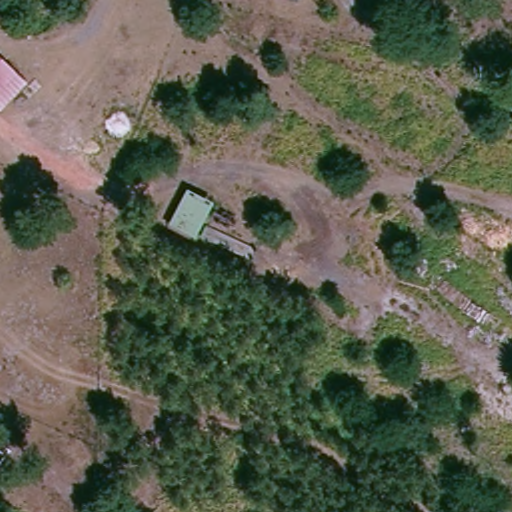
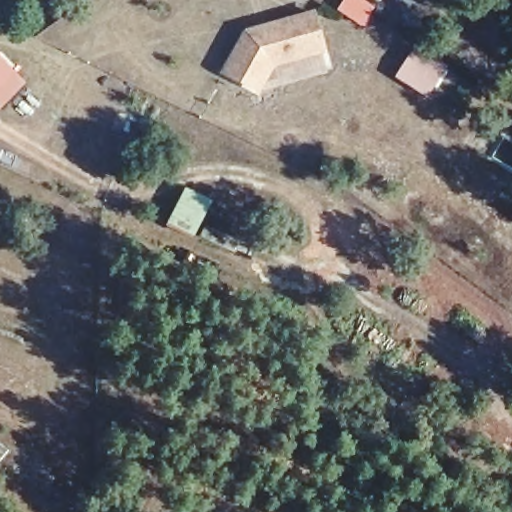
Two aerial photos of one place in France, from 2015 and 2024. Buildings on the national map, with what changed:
demolished [(290,1),(287,0),(291,0),(290,1)]
unchanged [(371,11),(361,0),(380,0),(371,11)]
new [(325,51),(274,65),(260,93),(220,73),(245,29),(315,11),(325,51)]
new [(416,44),(448,65),(427,97),(395,76),(416,44)]
unchanged [(14,72),(0,86),(0,58),(14,72)]
new [(185,188),(211,201),(193,239),(166,226),(185,188)]

